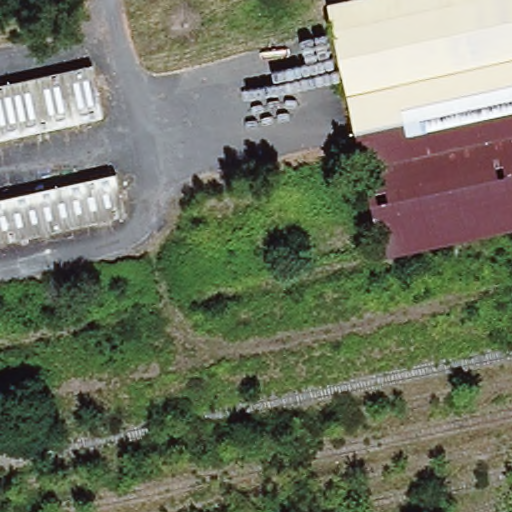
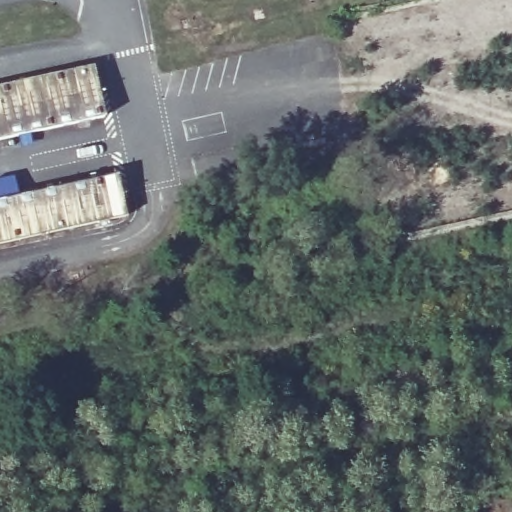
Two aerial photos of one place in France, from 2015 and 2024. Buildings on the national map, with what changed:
demolished [(512,0),(512,228),(381,257),(328,4),(347,0),(512,0)]
unchanged [(93,66),(106,117),(0,142),(0,86),(93,66)]
unchanged [(0,246),(0,200),(119,175),(126,217),(0,246)]

